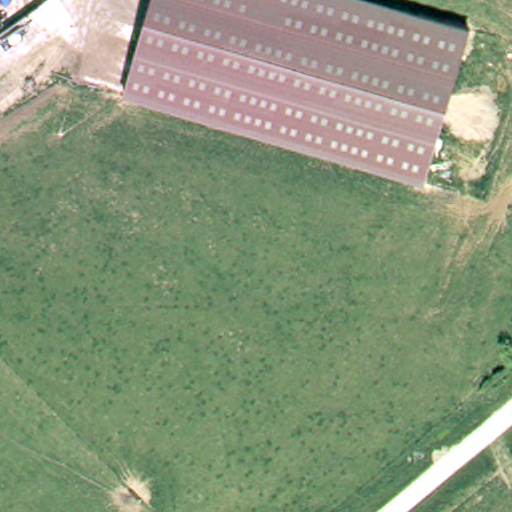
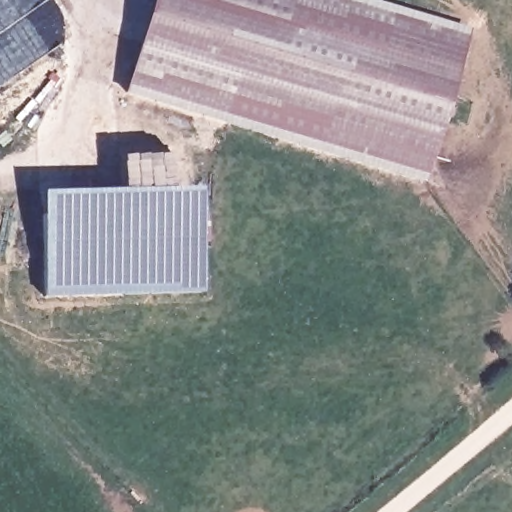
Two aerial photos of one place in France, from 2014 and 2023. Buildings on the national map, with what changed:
unchanged [(152,0),(361,0),(467,31),(421,185),(123,95),(152,0)]
new [(197,193),(197,215),(37,219),(37,198),(197,193)]
new [(197,215),(200,294),(40,299),(37,219),(197,215)]

